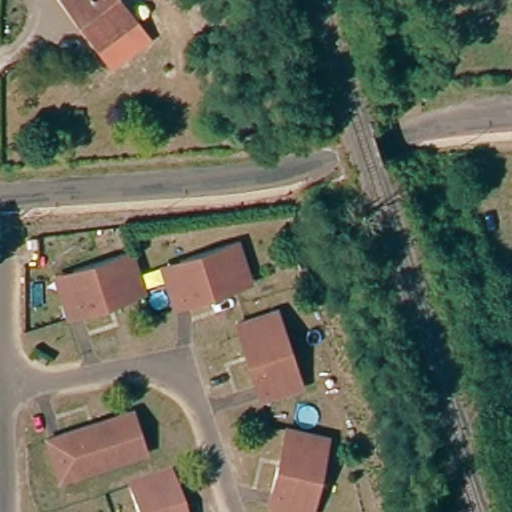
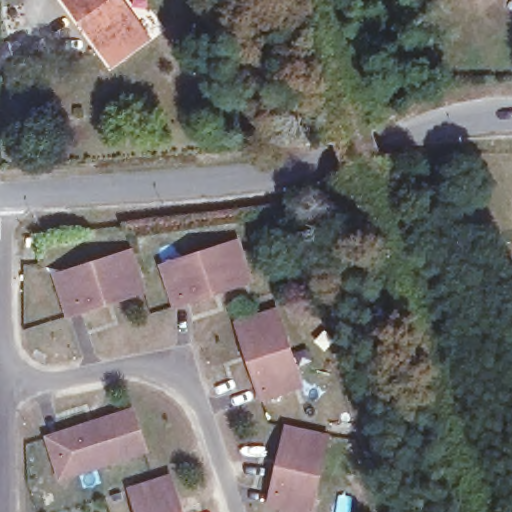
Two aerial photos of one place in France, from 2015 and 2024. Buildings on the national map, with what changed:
unchanged [(83,26),(89,21),(74,0),(119,0),(131,18),(95,43),(83,26)]
unchanged [(176,302),(167,274),(163,262),(181,256),(239,237),(252,278),(235,283),(215,290),(176,302)]
unchanged [(70,312),(60,284),(57,272),(74,266),(132,247),(146,288),(129,293),(108,300),(70,312)]
unchanged [(291,391),(263,400),(250,361),(244,341),(238,324),(278,311),(298,369),(303,387),(291,391)]
unchanged [(58,462),(49,434),(90,421),(118,412),(134,406),(148,447),(76,470),(62,474),(58,462)]
unchanged [(271,506),(280,467),(284,445),(288,428),(330,438),(316,497),(313,512),(298,512),(271,506)]
unchanged [(132,491),(172,478),(178,494),(184,512),(139,512),(132,491)]

